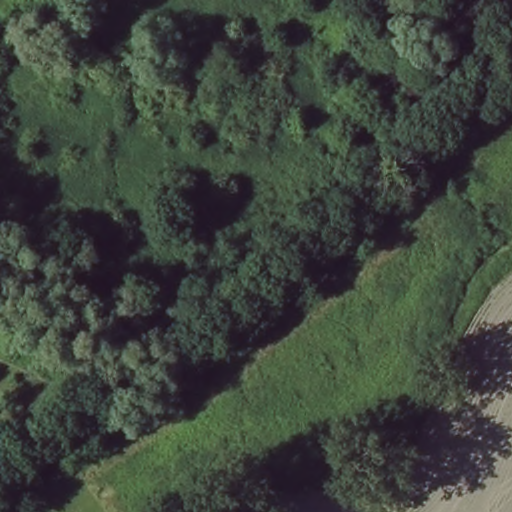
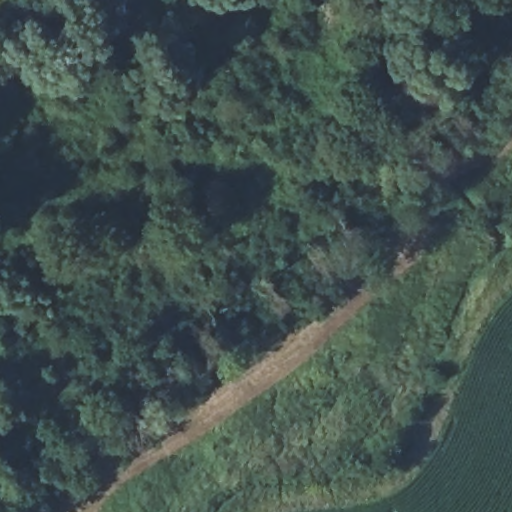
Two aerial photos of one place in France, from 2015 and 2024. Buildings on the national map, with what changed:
[]

